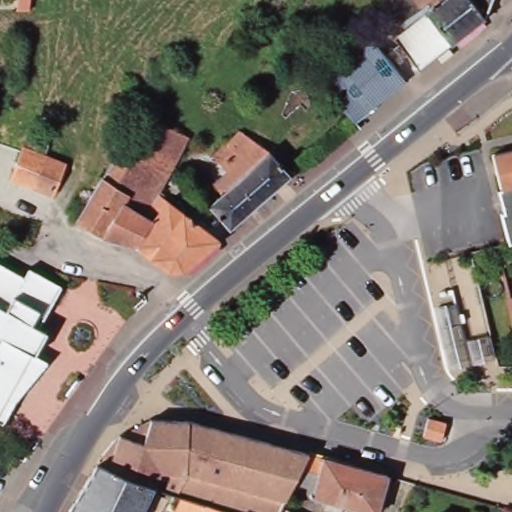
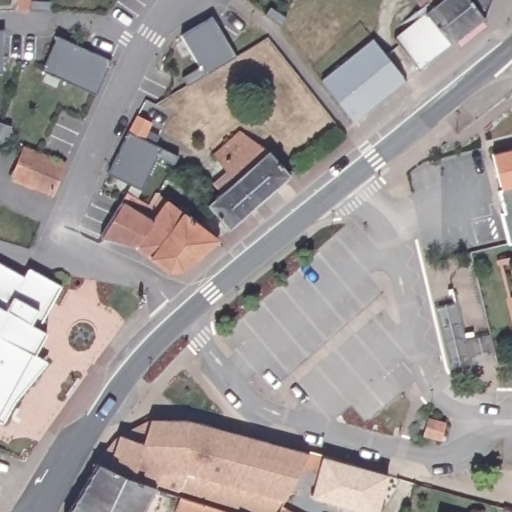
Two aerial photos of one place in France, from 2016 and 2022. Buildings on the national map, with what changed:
unchanged [(19,0),(31,0),(30,10),(18,10),(19,0)]
unchanged [(485,12),(476,19),(451,39),(440,26),(425,8),(419,0),(490,0),(485,12)]
unchanged [(425,8),(440,26),(451,39),(419,64),(394,33),(425,8)]
new [(212,16),(236,56),(204,75),(180,35),(212,16)]
new [(2,73),(0,73),(0,30),(4,30),(2,73)]
unchanged [(287,34),(313,67),(311,69),(305,74),(279,40),(287,34)]
new [(57,36),(111,61),(95,95),(41,70),(57,36)]
unchanged [(372,39),(406,80),(364,114),(365,105),(390,84),(360,48),(372,39)]
unchanged [(360,48),(390,84),(365,105),(364,114),(354,122),(320,80),(360,48)]
unchanged [(142,112),(173,127),(191,137),(183,155),(158,142),(155,140),(134,129),(142,112)]
unchanged [(187,270),(173,271),(154,258),(139,245),(107,237),(106,236),(80,220),(93,199),(106,175),(116,160),(120,154),(128,141),(129,140),(129,139),(130,138),(134,129),(155,140),(158,142),(183,155),(181,158),(178,164),(177,166),(177,167),(166,187),(165,189),(164,190),(163,193),(223,238),(187,270)]
unchanged [(220,193),(213,184),(227,172),(212,155),(239,131),(269,151),(290,174),(229,228),(208,204),(220,193)]
unchanged [(23,142),(27,132),(49,141),(45,151),(66,159),(59,175),(52,191),(10,175),(21,147),(23,142)]
unchanged [(512,144),(512,208),(509,208),(503,183),(501,183),(492,149),(512,144)]
unchanged [(33,263),(66,281),(43,323),(51,328),(39,350),(47,354),(14,392),(2,415),(0,414),(0,256),(28,272),(33,263)]
unchanged [(452,289),(470,362),(449,367),(432,294),(452,289)]
unchanged [(489,336),(494,357),(474,361),(469,341),(489,336)]
unchanged [(202,423),(204,417),(228,424),(256,432),(285,439),(313,447),(293,484),(285,500),(279,512),(248,512),(244,510),(184,491),(188,476),(202,423)]
unchanged [(428,417),(446,422),(441,441),(423,436),(428,417)]
unchanged [(148,420),(186,420),(202,423),(188,476),(152,470),(131,471),(102,458),(118,435),(148,420)]
unchanged [(313,447),(392,469),(381,508),(293,484),(313,447)]
unchanged [(131,471),(133,472),(159,482),(158,483),(144,512),(71,512),(102,458),(131,471)]
unchanged [(184,491),(244,510),(248,512),(188,512),(178,508),(184,491)]
unchanged [(307,512),(279,512),(285,500),(307,512)]
unchanged [(460,512),(444,512),(445,508),(460,512)]

